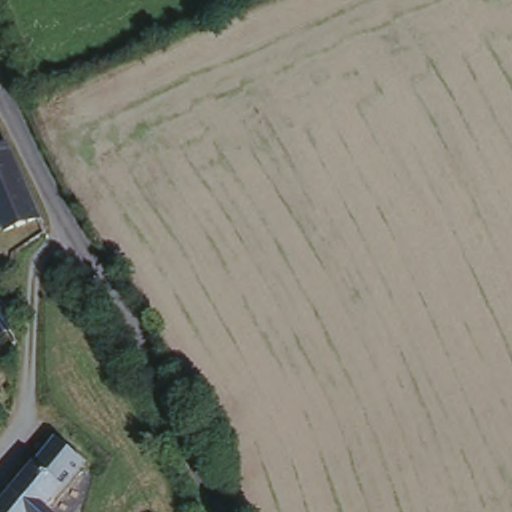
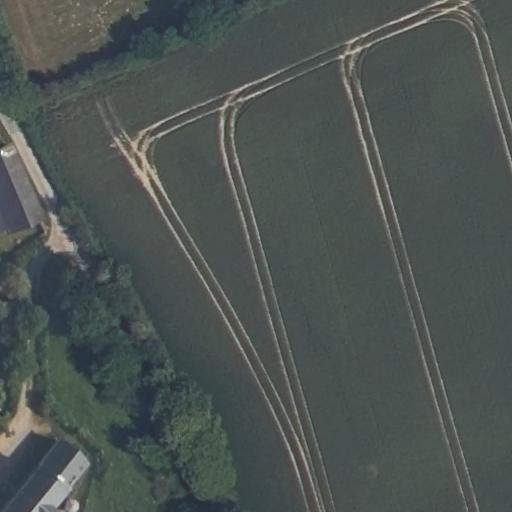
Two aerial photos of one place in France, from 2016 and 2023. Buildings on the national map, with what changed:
unchanged [(0,228),(0,151),(10,145),(16,158),(40,208),(0,228)]
unchanged [(47,512),(0,512),(0,505),(55,440),(82,467),(47,512)]

